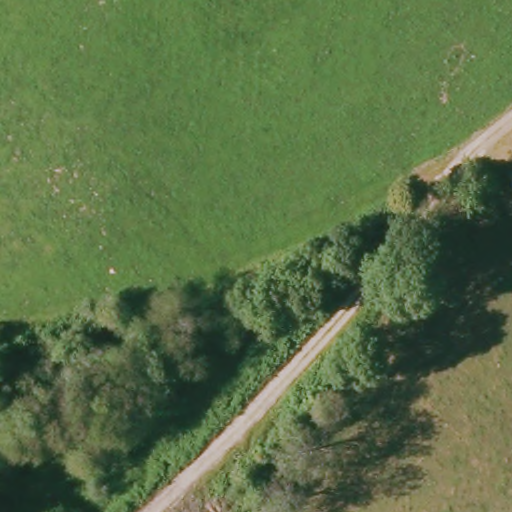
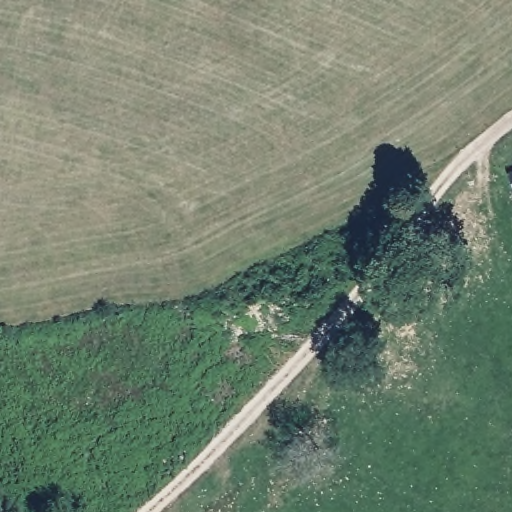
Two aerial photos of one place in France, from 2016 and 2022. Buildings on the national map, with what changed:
unchanged [(512,177),(512,190),(507,179),(512,177)]

